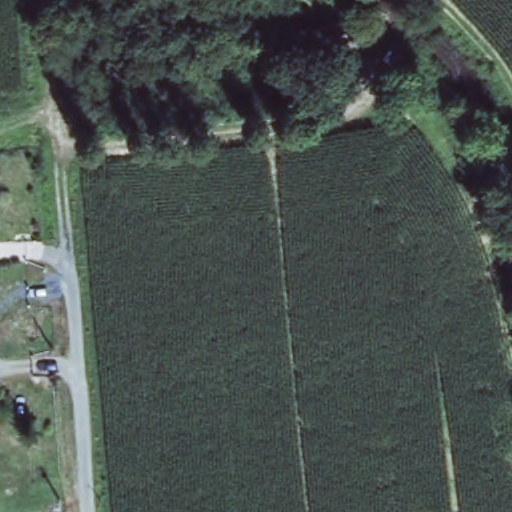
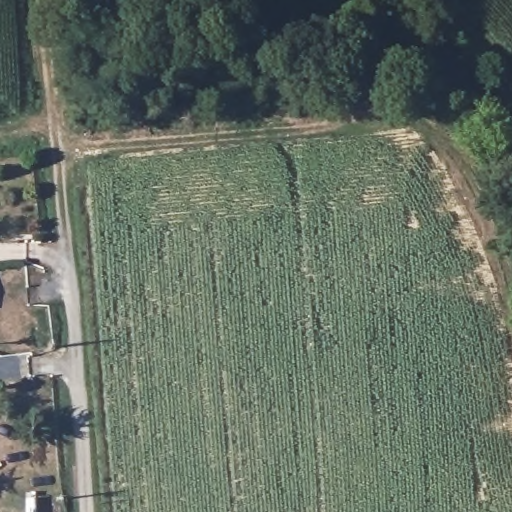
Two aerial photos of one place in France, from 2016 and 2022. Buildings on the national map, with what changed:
unchanged [(6,296),(0,296),(0,269),(5,269),(6,296)]

